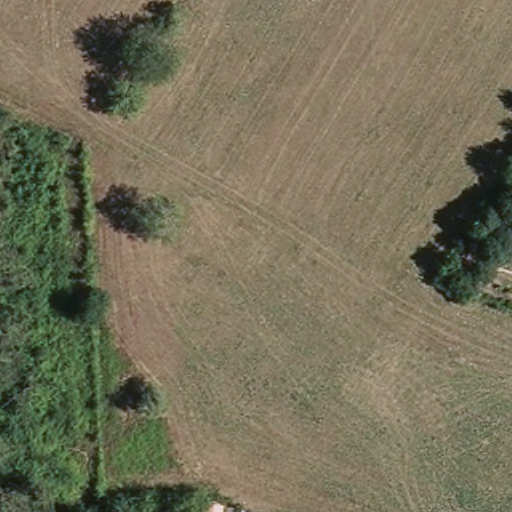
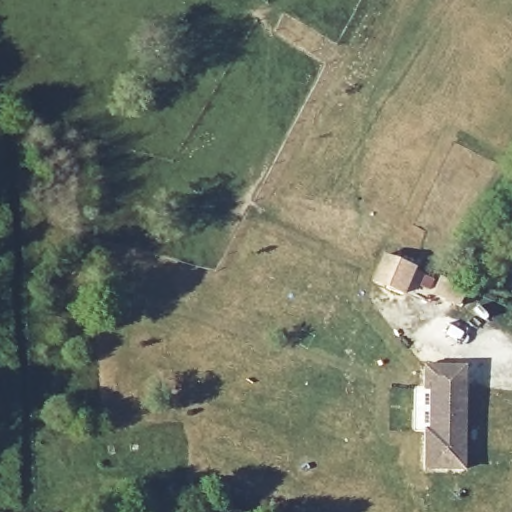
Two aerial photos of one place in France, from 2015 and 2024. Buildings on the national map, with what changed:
new [(423,471),(422,430),(428,430),(429,393),(422,392),(423,366),(466,366),(464,471),(423,471)]

